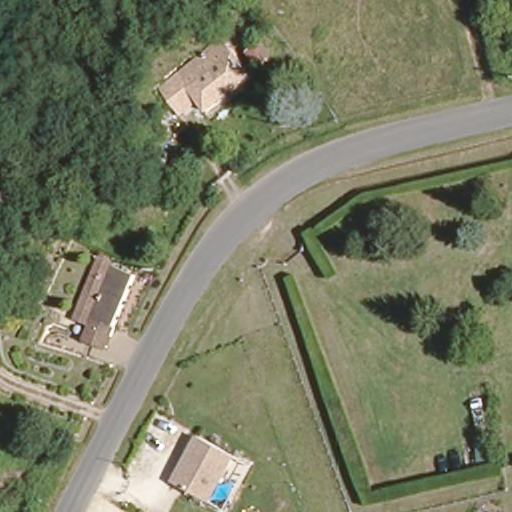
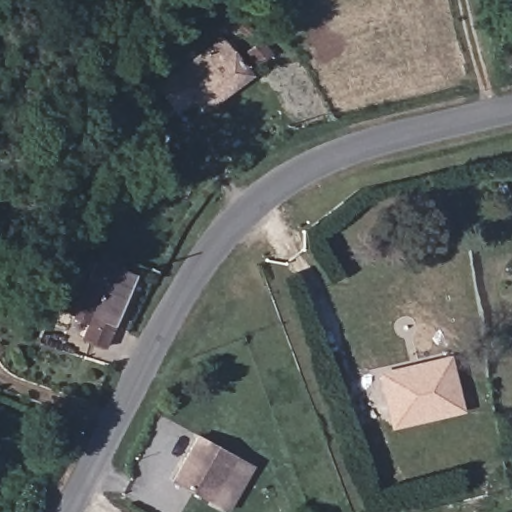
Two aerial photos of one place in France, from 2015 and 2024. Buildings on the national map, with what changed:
unchanged [(154,87),(219,35),(249,75),(203,111),(186,91),(168,106),(159,93),(154,87)]
unchanged [(140,270),(109,342),(89,334),(95,319),(78,312),(101,255),(140,270)]
new [(392,429),(378,372),(450,355),(465,412),(392,429)]
unchanged [(212,502),(171,481),(196,435),(236,457),(212,502)]
new [(236,457),(254,466),(229,512),(212,502),(236,457)]

